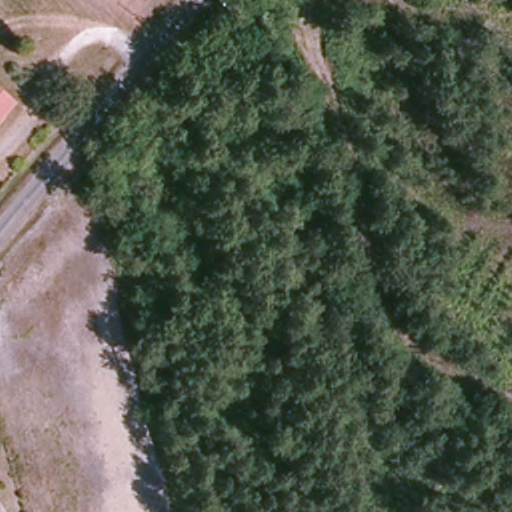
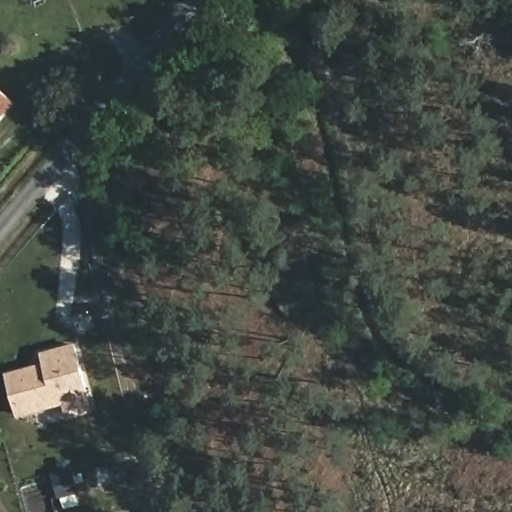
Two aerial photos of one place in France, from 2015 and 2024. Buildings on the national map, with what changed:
unchanged [(19,98),(0,120),(0,82),(19,98)]
new [(69,419),(65,404),(19,416),(7,372),(45,362),(42,351),(77,341),(96,412),(69,419)]

